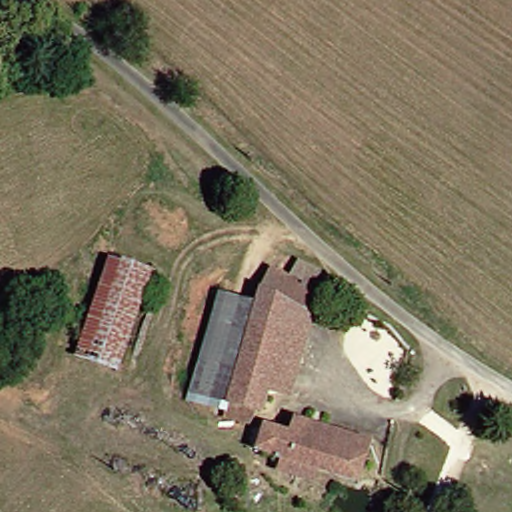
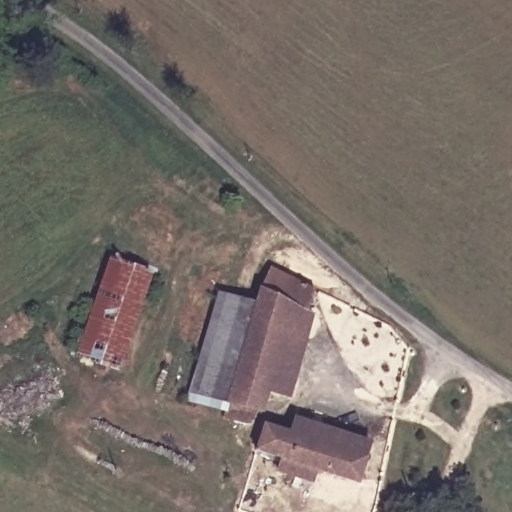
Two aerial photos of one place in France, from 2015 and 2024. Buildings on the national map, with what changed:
unchanged [(157,270),(121,372),(81,359),(118,256),(157,270)]
unchanged [(335,273),(333,280),(321,319),(301,313),(279,386),(269,414),(261,411),(256,423),(241,418),(228,414),(261,312),(273,272),(304,280),(310,264),(318,266),(335,273)]
unchanged [(228,414),(191,402),(221,300),(261,312),(228,414)]
unchanged [(328,321),(305,394),(279,386),(301,313),(321,319),(328,321)]
unchanged [(269,472),(256,468),(259,449),(233,442),(241,418),(256,423),(267,426),(271,411),(346,429),(332,472),(291,460),(290,476),(269,472)]

